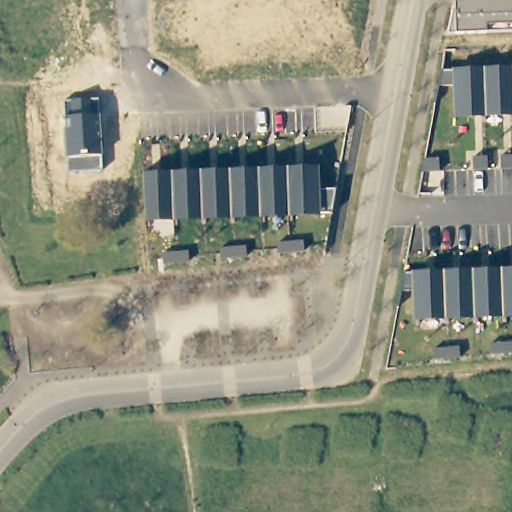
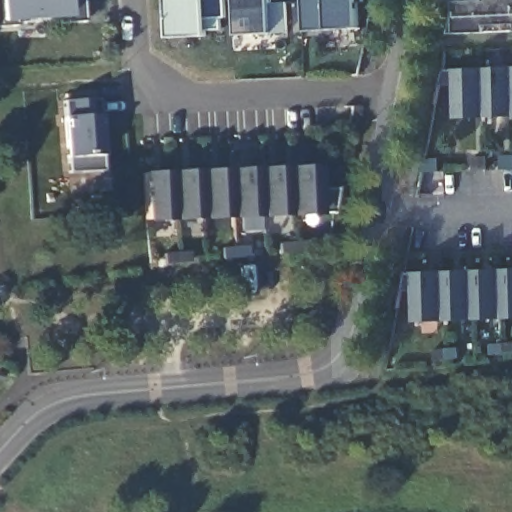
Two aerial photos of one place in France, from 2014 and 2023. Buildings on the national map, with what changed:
new [(66,23),(66,20),(15,23),(15,28),(0,29),(0,0),(81,0),(83,21),(66,23)]
unchanged [(220,18),(220,30),(206,31),(206,36),(169,39),(166,0),(225,0),(226,18),(220,18)]
new [(286,4),(287,31),(237,35),(236,0),(271,0),(271,4),(286,4)]
new [(303,31),(302,0),(359,0),(360,28),(303,31)]
unchanged [(457,33),(448,34),(452,6),(456,6),(456,2),(486,1),(486,0),(512,0),(512,31),(457,33)]
unchanged [(512,67),(512,117),(456,119),(454,85),(440,86),(444,71),(453,69),(512,67)]
unchanged [(65,102),(100,99),(100,116),(101,156),(102,171),(69,174),(69,159),(65,119),(65,102)]
unchanged [(319,168),(320,190),(336,189),(332,212),(320,214),(320,218),(147,223),(145,174),(319,168)]
unchanged [(512,268),(512,319),(415,322),(414,292),(401,292),(404,273),(412,272),(512,268)]

